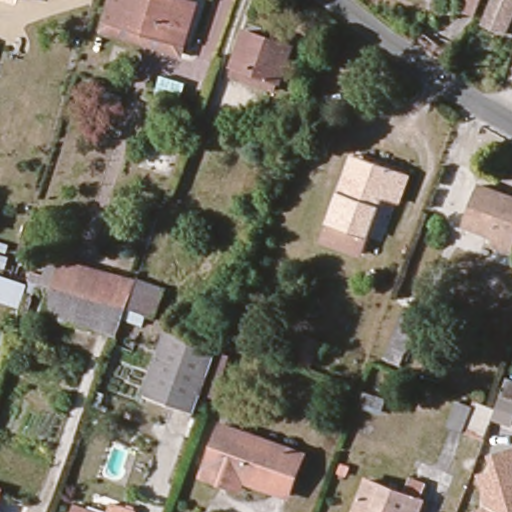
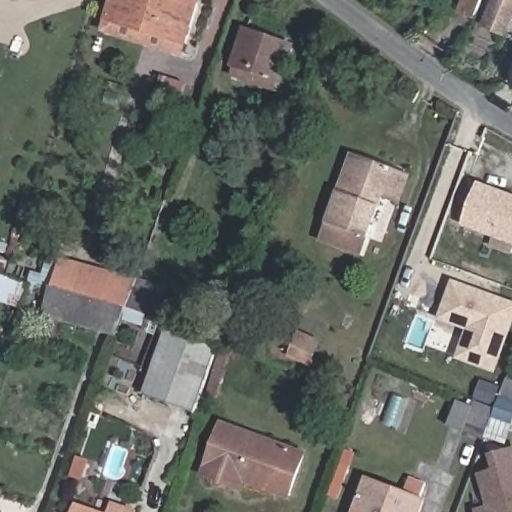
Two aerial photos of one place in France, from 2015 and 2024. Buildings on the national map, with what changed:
unchanged [(183,44),(106,26),(111,0),(160,0),(189,6),(183,44)]
unchanged [(452,9),(456,0),(476,0),(470,15),(452,9)]
unchanged [(486,24),(497,0),(512,0),(512,29),(509,36),(486,24)]
unchanged [(280,86),(232,74),(246,31),(292,43),(280,86)]
unchanged [(185,85),(179,104),(158,97),(164,77),(185,85)]
unchanged [(326,230),(338,196),(352,156),(364,161),(401,174),(411,178),(399,207),(391,204),(379,200),(365,243),(360,259),(320,248),(326,230)]
unchanged [(492,235),(462,224),(480,188),(505,198),(512,201),(512,248),(509,256),(486,248),(492,235)]
unchanged [(57,288),(65,261),(118,277),(109,306),(57,288)]
new [(512,328),(493,373),(455,359),(466,330),(438,320),(452,279),(512,301),(512,328)]
unchanged [(137,281),(156,288),(146,318),(127,312),(137,281)]
unchanged [(17,307),(0,303),(0,282),(22,288),(17,307)]
unchanged [(109,306),(127,312),(118,337),(44,311),(51,286),(57,288),(109,306)]
unchanged [(406,318),(390,365),(373,359),(390,313),(406,318)]
unchanged [(197,416),(150,396),(171,331),(221,348),(197,416)]
new [(504,386),(507,378),(512,379),(512,423),(493,416),(486,437),(475,434),(485,407),(474,403),(482,380),(504,386)]
unchanged [(445,430),(458,397),(485,407),(474,439),(445,430)]
unchanged [(211,484),(202,481),(204,468),(221,426),(297,452),(304,455),(291,496),(282,494),(243,481),(239,492),(211,484)]
unchanged [(488,455),(512,448),(512,512),(476,512),(475,509),(485,506),(477,474),(492,470),(488,455)]
unchanged [(355,512),(366,483),(422,501),(418,512),(355,512)]
unchanged [(91,512),(78,512),(79,508),(91,512)]

